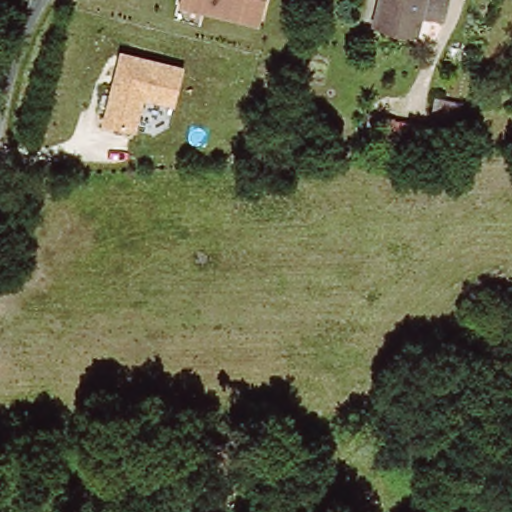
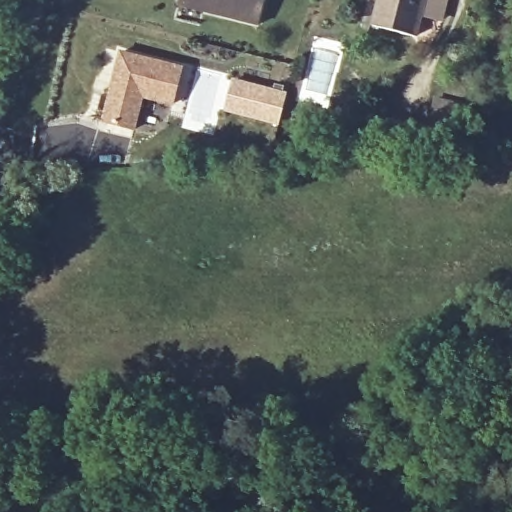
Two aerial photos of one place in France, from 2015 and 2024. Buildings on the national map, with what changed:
unchanged [(188,0),(261,0),(256,17),(188,0)]
unchanged [(376,0),(444,0),(437,24),(418,20),(411,41),(367,30),(376,0)]
unchanged [(119,47),(185,64),(175,107),(143,98),(135,134),(99,125),(119,47)]
new [(232,79),(285,94),(277,126),(223,113),(232,79)]
unchanged [(425,124),(432,102),(463,110),(457,132),(425,124)]

